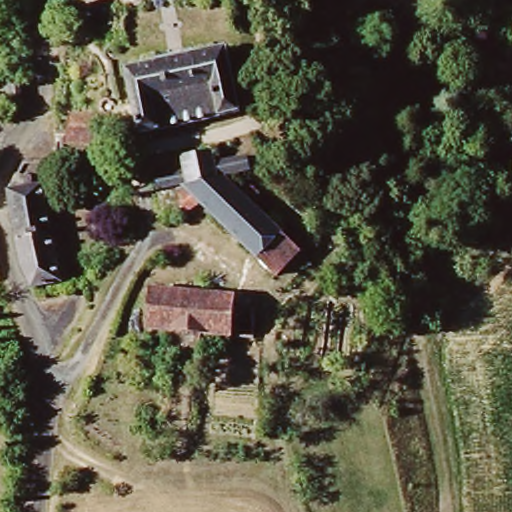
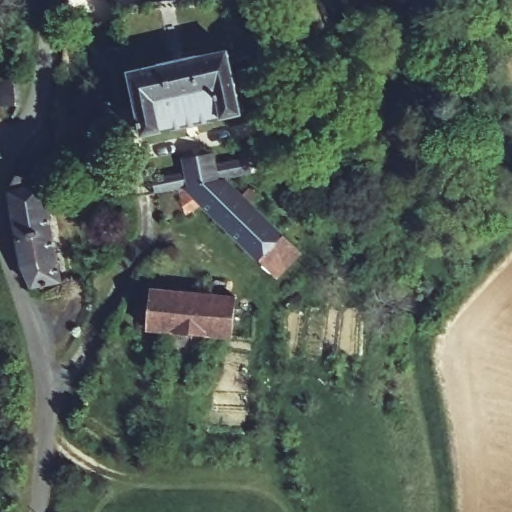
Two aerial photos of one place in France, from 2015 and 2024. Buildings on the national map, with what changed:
unchanged [(389,9),(388,0),(426,0),(427,2),(389,9)]
unchanged [(145,141),(130,75),(227,51),(243,118),(145,141)]
unchanged [(8,87),(17,87),(17,119),(0,119),(0,87),(8,87)]
unchanged [(107,127),(105,145),(76,143),(74,169),(62,168),(65,139),(73,139),(75,124),(107,127)]
unchanged [(184,217),(160,222),(156,198),(154,187),(187,179),(187,167),(217,160),(219,170),(254,160),(256,171),(225,179),(288,243),(305,260),(277,287),(260,269),(200,205),(184,217)]
unchanged [(31,292),(19,267),(9,186),(20,163),(36,165),(55,290),(31,292)]
unchanged [(234,298),(231,339),(148,333),(150,293),(234,298)]

